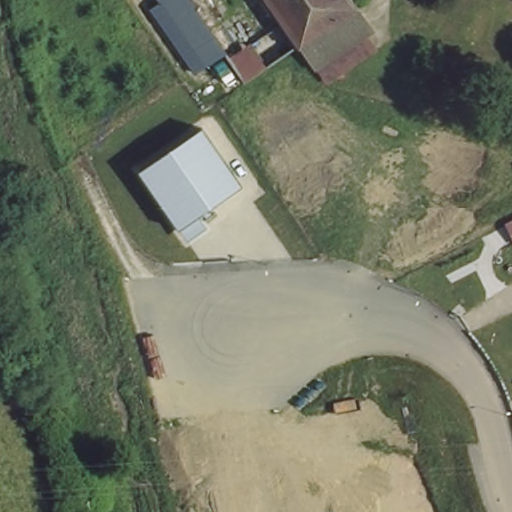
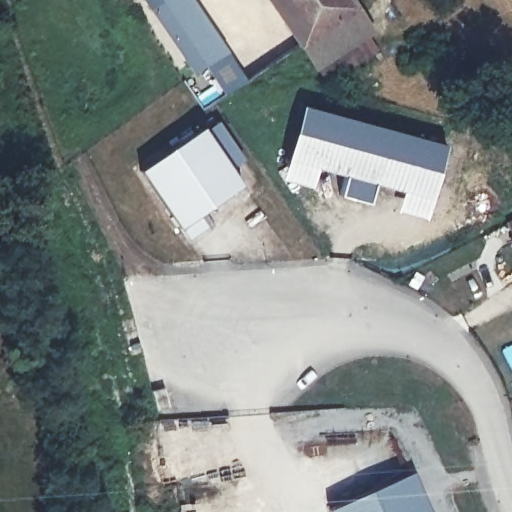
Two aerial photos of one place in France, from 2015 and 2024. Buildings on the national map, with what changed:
unchanged [(232,45),(248,35),(265,59),(243,76),(223,51),(195,70),(148,3),(153,0),(200,0),(232,45)]
unchanged [(370,18),(311,58),(298,39),(275,6),(272,3),(271,0),(358,0),(370,18)]
unchanged [(327,84),(311,58),(370,18),(375,31),(367,36),(377,50),(327,84)]
new [(440,138),(425,208),(401,201),(406,183),(375,175),(372,189),(338,180),(342,165),(315,157),(310,174),(282,167),(299,97),(440,138)]
unchanged [(202,126),(242,185),(198,215),(207,227),(187,240),(138,169),(202,126)]
demolished [(318,133),(335,157),(292,185),(275,163),(318,133)]
new [(411,472),(429,512),(330,512),(328,509),(411,472)]

